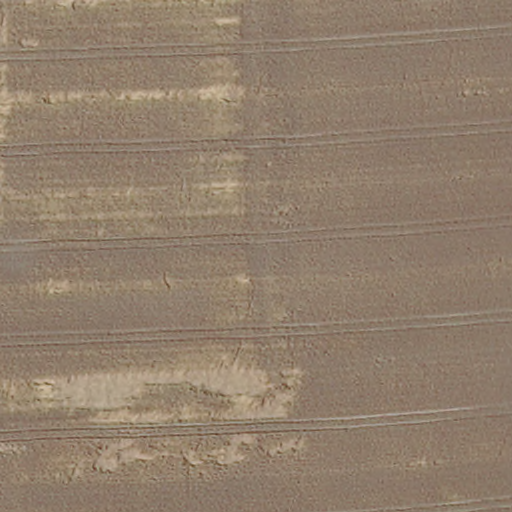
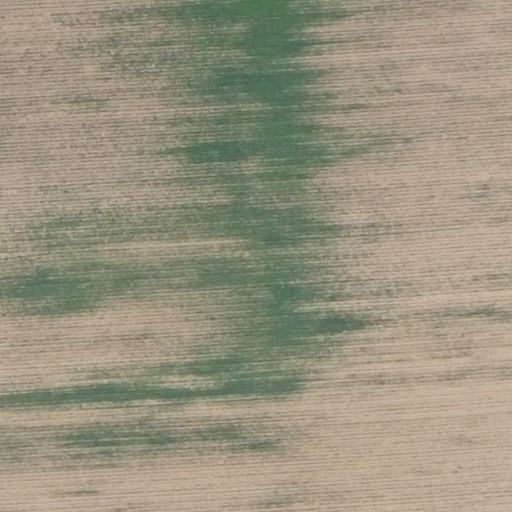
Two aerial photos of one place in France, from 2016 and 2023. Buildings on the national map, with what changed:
[]

